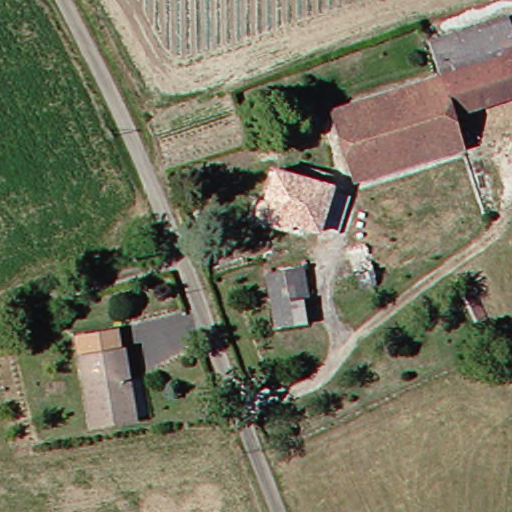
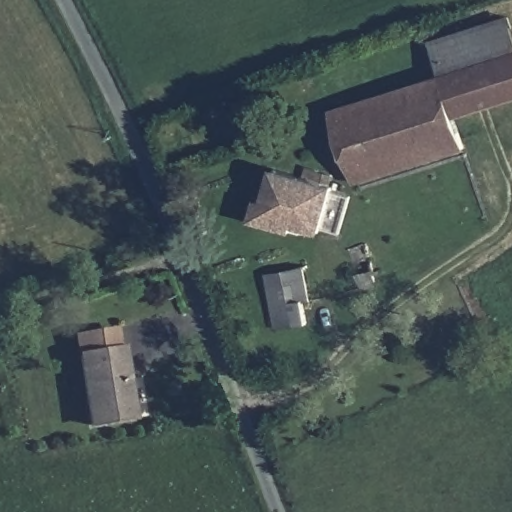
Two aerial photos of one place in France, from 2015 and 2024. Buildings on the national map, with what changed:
unchanged [(499,21),(510,60),(437,79),(426,43),(499,21)]
unchanged [(510,60),(512,68),(512,99),(443,120),(432,80),(437,79),(510,60)]
unchanged [(455,155),(346,188),(330,127),(313,130),(308,115),(325,111),(432,80),(443,120),(455,155)]
unchanged [(314,232),(295,227),(292,238),(258,228),(274,175),(296,181),(298,171),(330,179),(314,232)]
unchanged [(255,277),(299,263),(308,300),(295,305),(302,331),(275,337),(255,277)]
unchanged [(90,418),(77,349),(108,342),(113,368),(122,366),(132,410),(90,418)]

